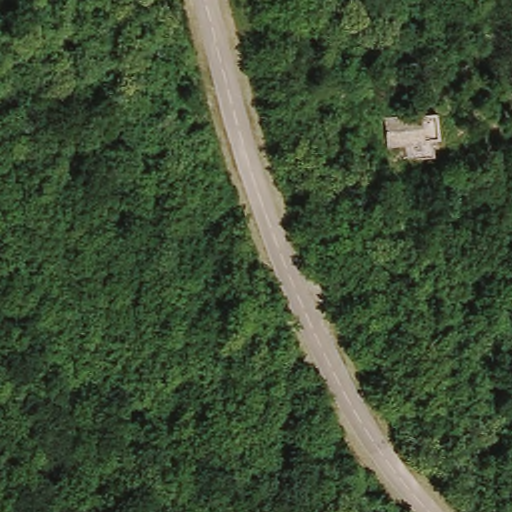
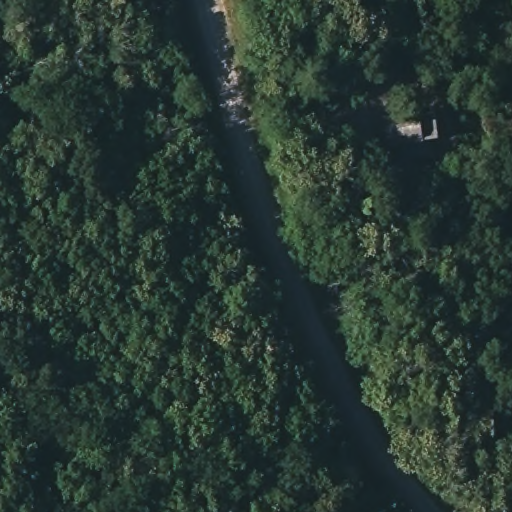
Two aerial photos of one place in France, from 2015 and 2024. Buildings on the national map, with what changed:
unchanged [(441,141),(382,146),(380,115),(436,111),(441,141)]

